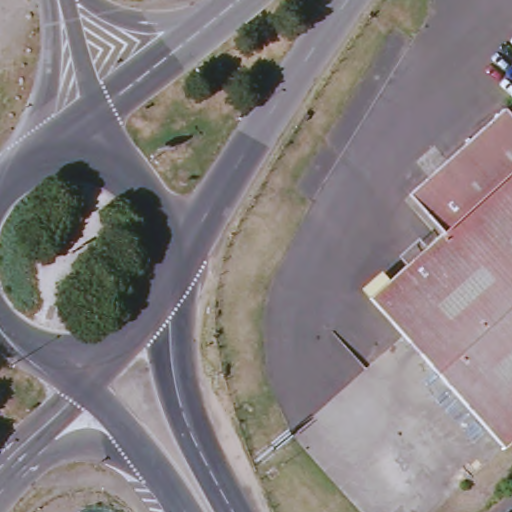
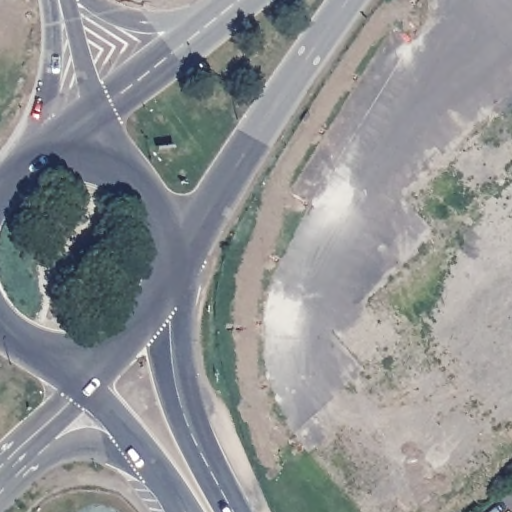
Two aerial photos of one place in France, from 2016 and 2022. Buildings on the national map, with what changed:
demolished [(371,296),(387,281),(405,265),(424,248),(425,247),(441,232),(409,195),(505,109),(512,117),(512,442),(503,450),(368,298),(371,296)]

